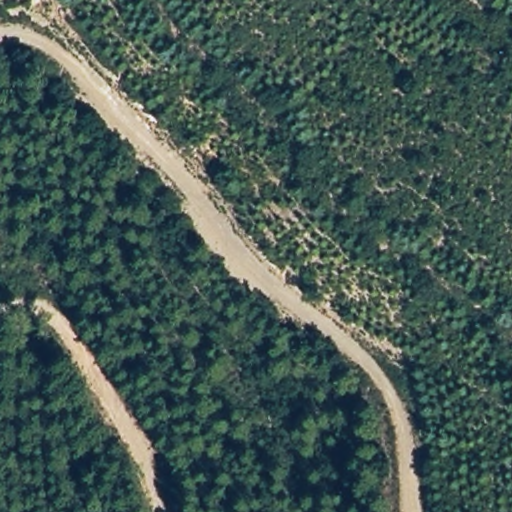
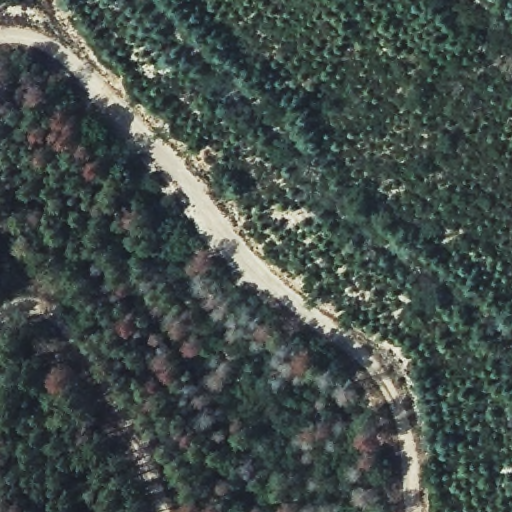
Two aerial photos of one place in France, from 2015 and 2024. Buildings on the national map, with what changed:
[]

